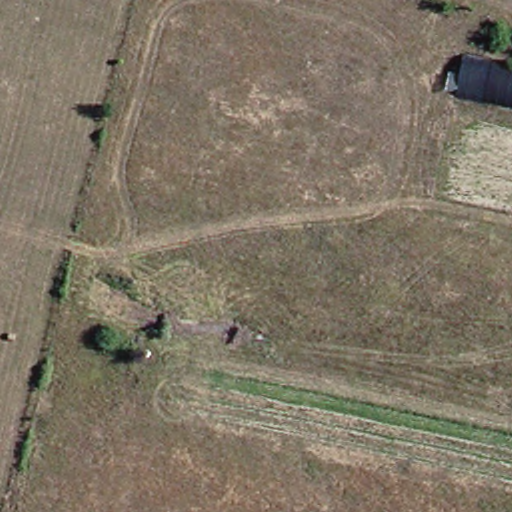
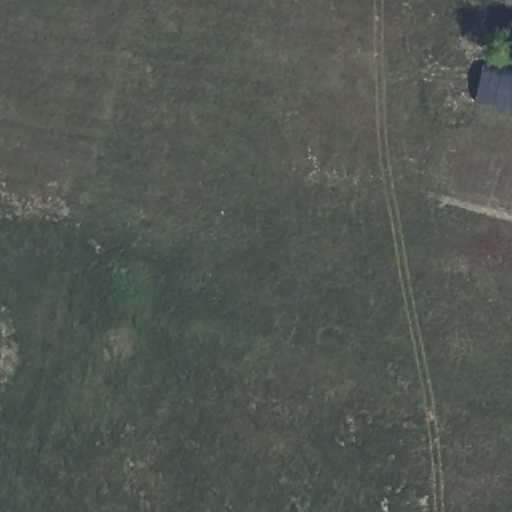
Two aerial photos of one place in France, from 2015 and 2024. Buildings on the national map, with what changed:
unchanged [(512,109),(457,97),(465,57),(512,68),(512,109)]

